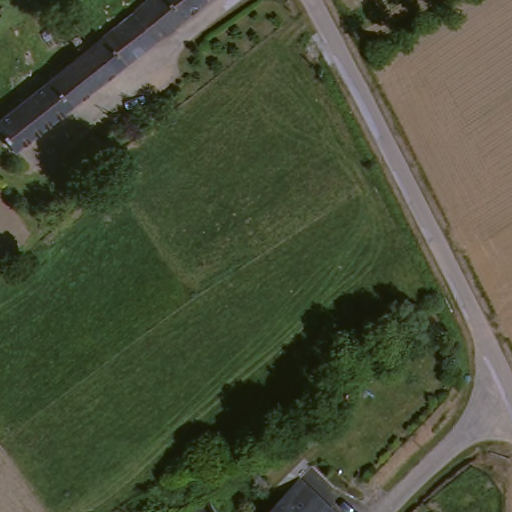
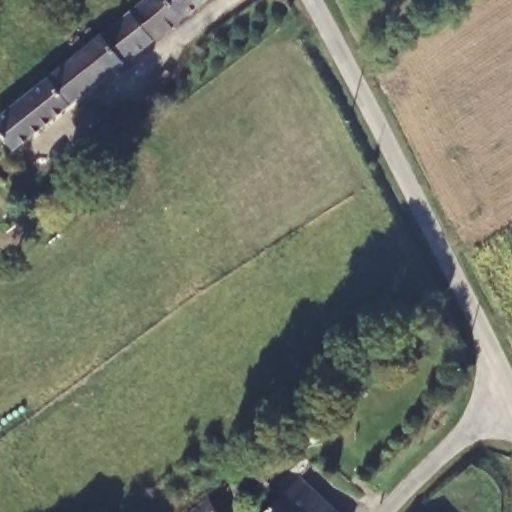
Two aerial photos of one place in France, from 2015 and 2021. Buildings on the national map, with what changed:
unchanged [(170,0),(187,22),(127,69),(103,38),(151,0),(170,0)]
unchanged [(103,38),(127,69),(16,156),(0,135),(0,118),(103,38)]
unchanged [(300,62),(310,56),(315,64),(305,70),(300,62)]
unchanged [(275,504),(297,483),(325,512),(267,512),(275,504)]
unchanged [(198,503),(204,512),(187,512),(198,503)]

